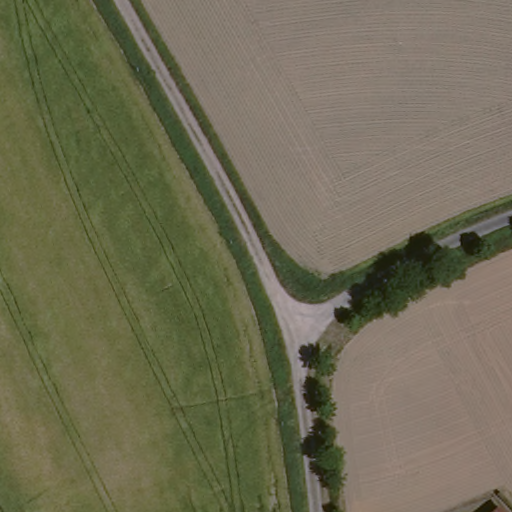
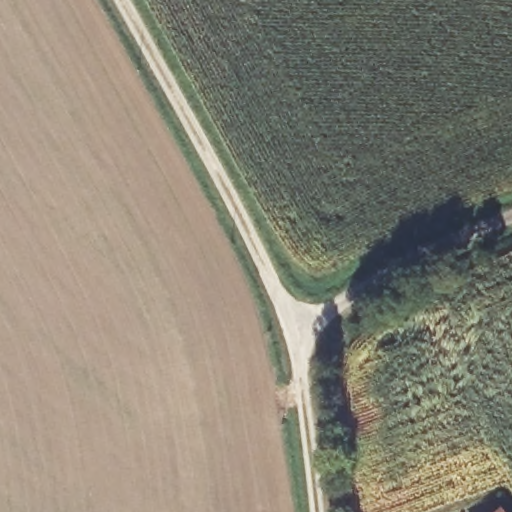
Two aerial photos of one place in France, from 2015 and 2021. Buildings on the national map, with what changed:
unchanged [(512,512),(493,512),(505,502),(512,512)]

